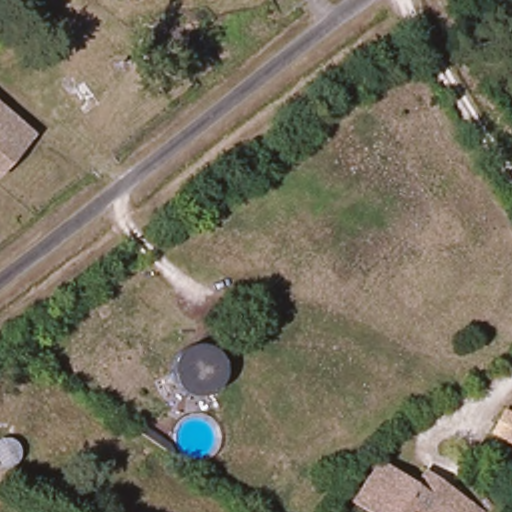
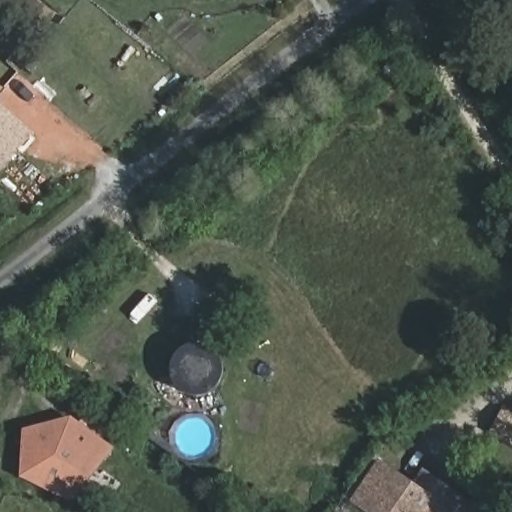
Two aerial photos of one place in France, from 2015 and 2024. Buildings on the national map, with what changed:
unchanged [(30,135),(0,168),(0,109),(30,135)]
new [(192,344),(200,344),(208,347),(215,352),(220,359),(222,366),(224,374),(222,382),(217,388),(211,394),(203,397),(195,398),(187,397),(180,392),(175,387),(171,379),(169,373),(170,365),(172,357),(177,352),(185,346),(192,344)]
demolished [(234,365),(216,391),(195,377),(215,351),(234,365)]
unchanged [(501,413),(512,418),(512,446),(490,437),(501,413)]
new [(72,503),(20,477),(22,430),(72,416),(115,448),(72,503)]
unchanged [(361,512),(350,505),(376,466),(414,493),(427,476),(437,483),(477,511),(476,512),(361,512)]

